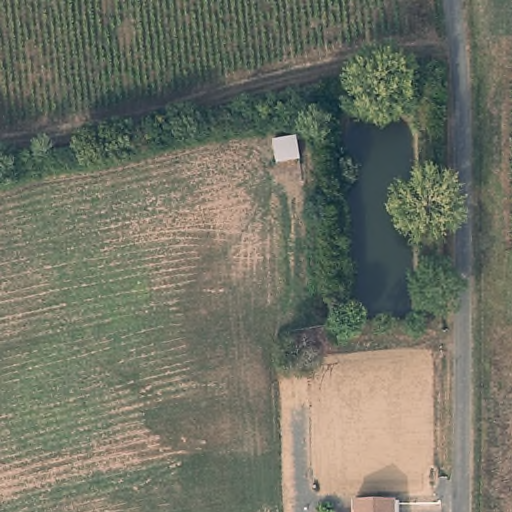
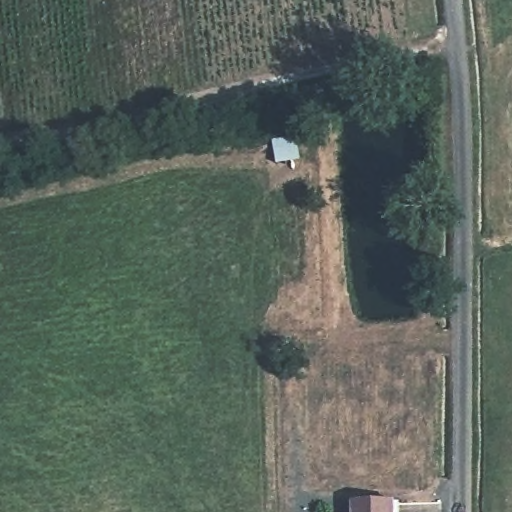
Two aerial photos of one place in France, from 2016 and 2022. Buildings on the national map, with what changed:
unchanged [(395,501),(395,512),(355,512),(355,501),(395,501)]

